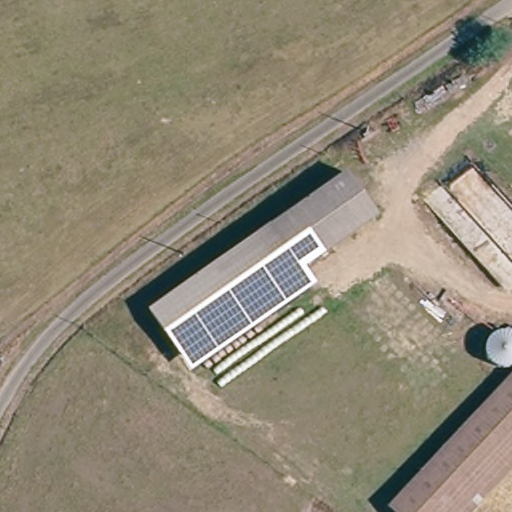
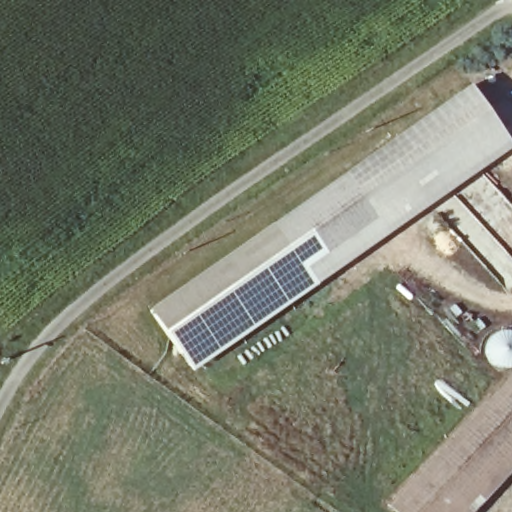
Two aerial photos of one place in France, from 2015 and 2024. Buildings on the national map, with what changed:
new [(303,270),(300,263),(313,254),(373,208),(367,201),(343,169),(471,82),(512,145),(512,148),(316,285),(303,270)]
unchanged [(343,169),(373,208),(313,254),(300,263),(271,222),(280,215),(343,169)]
unchanged [(192,370),(150,309),(271,225),(300,263),(303,270),(316,285),(192,370)]
unchanged [(467,512),(395,512),(388,505),(512,387),(512,465),(467,512)]

